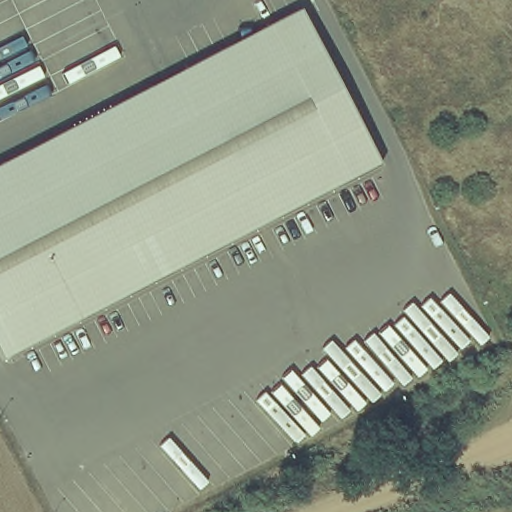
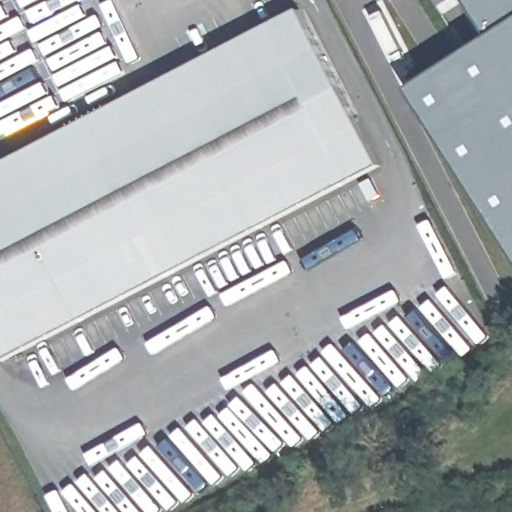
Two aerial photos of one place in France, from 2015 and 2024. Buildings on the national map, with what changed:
new [(422,89),(504,38),(479,0),(512,0),(512,232),(422,89)]
unchanged [(385,164),(10,362),(0,343),(0,169),(304,11),(385,164)]

